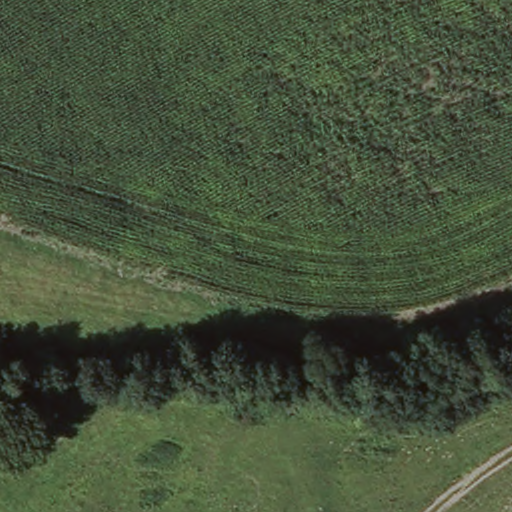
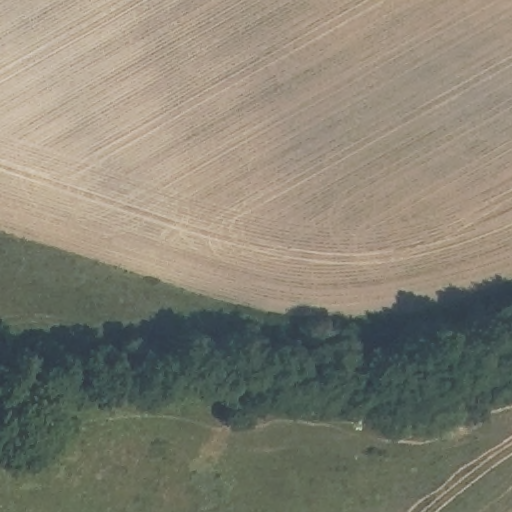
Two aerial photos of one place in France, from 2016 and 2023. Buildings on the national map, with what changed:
[]

